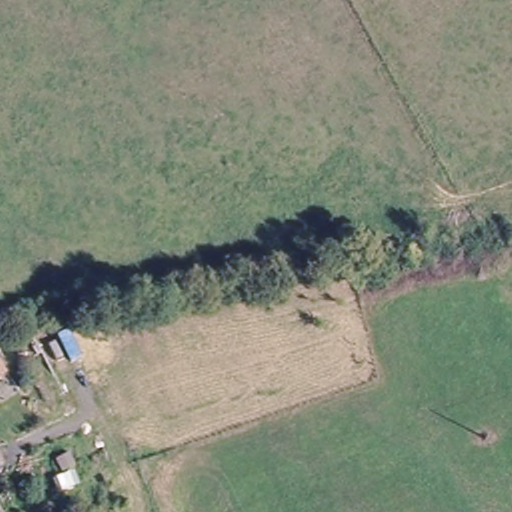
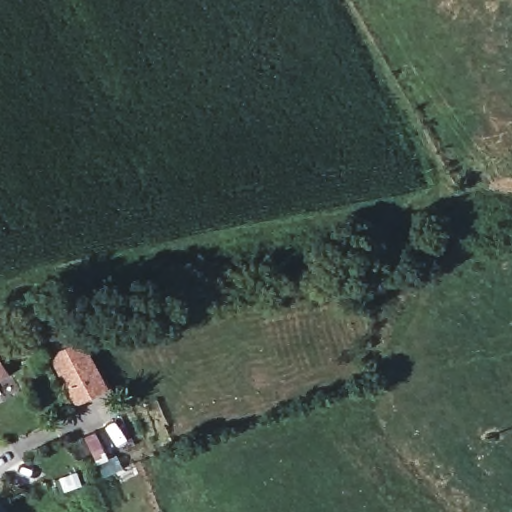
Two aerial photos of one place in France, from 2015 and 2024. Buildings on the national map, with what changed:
new [(107,388),(73,406),(46,353),(81,336),(107,388)]
unchanged [(0,384),(0,365),(8,380),(0,384)]

